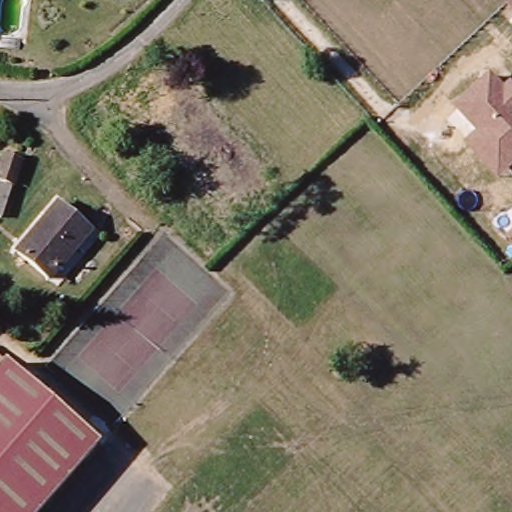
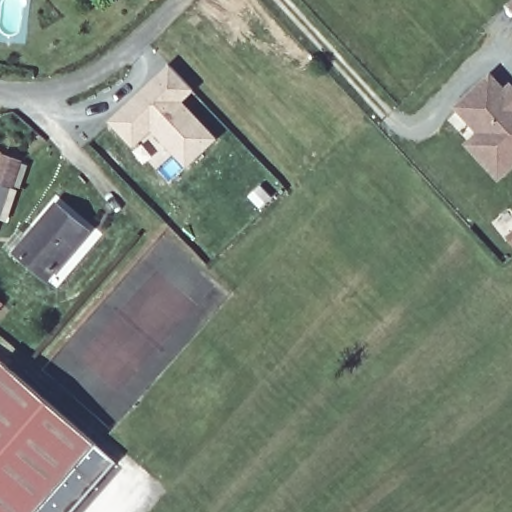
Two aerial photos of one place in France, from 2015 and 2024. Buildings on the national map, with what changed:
new [(172,68),(194,92),(181,104),(216,141),(188,167),(153,130),(135,147),(113,123),(172,68)]
unchanged [(512,84),(512,170),(500,182),(465,144),(477,134),(452,107),(492,71),(505,87),(510,83),(512,84)]
unchanged [(0,163),(2,155),(19,161),(11,184),(0,180),(0,163)]
unchanged [(0,185),(9,189),(0,215),(0,185)]
unchanged [(47,279),(15,253),(54,204),(86,232),(47,279)]
unchanged [(37,512),(0,512),(0,360),(96,445),(37,512)]

